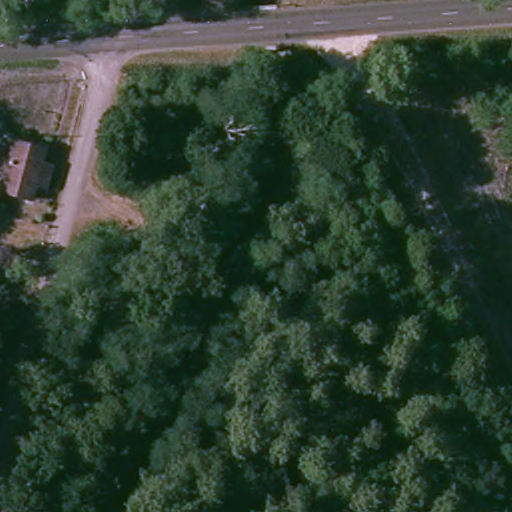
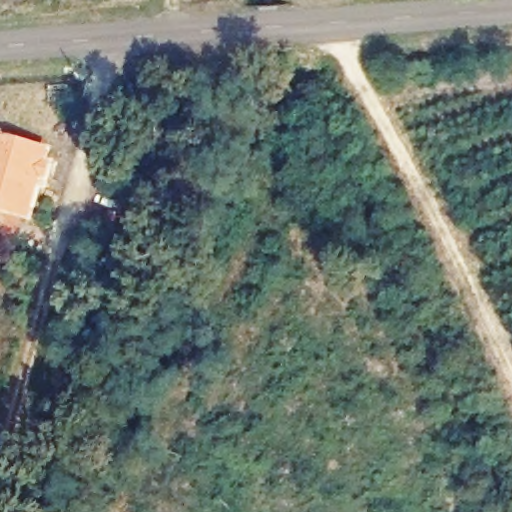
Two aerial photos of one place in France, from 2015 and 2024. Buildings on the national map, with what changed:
new [(47,148),(44,161),(54,165),(49,189),(37,186),(32,201),(2,191),(0,197),(0,135),(47,148)]
demolished [(6,143),(54,155),(52,165),(43,192),(39,206),(0,196),(0,165),(6,143)]

